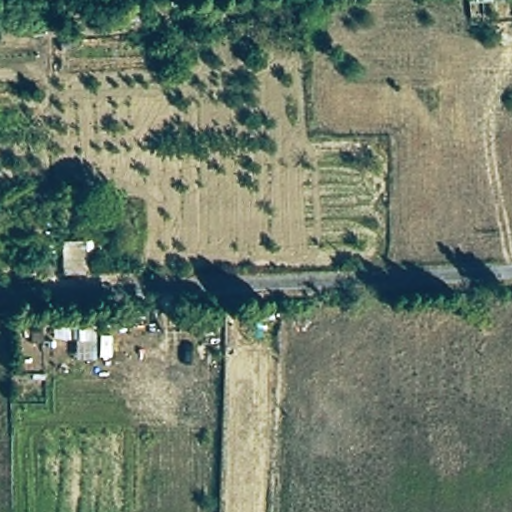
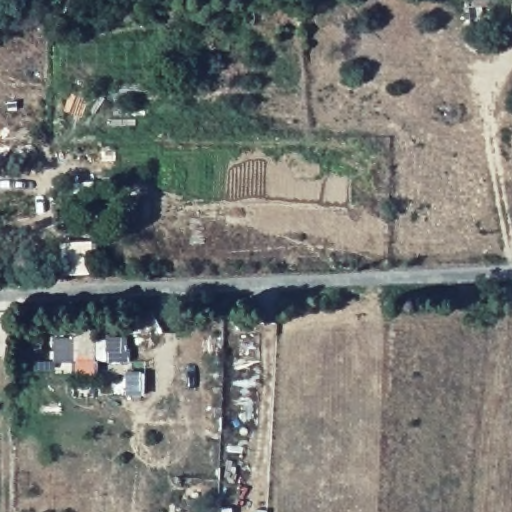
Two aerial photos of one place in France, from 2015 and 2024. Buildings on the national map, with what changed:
unchanged [(60,277),(61,244),(86,245),(88,276),(60,277)]

